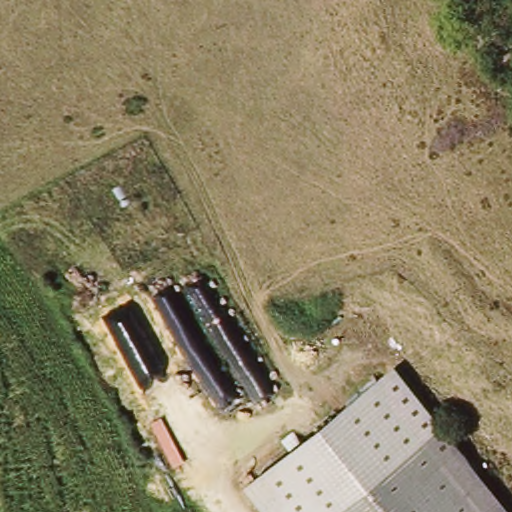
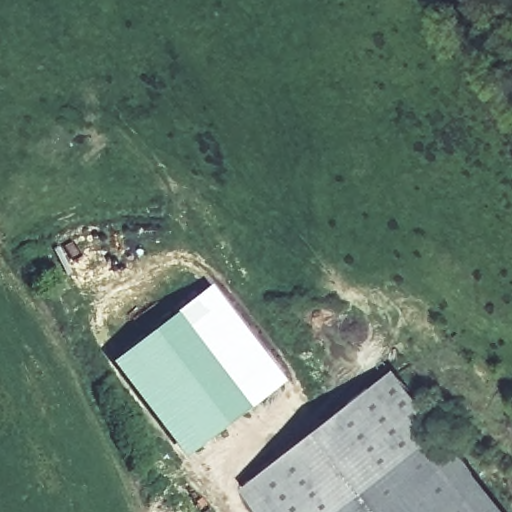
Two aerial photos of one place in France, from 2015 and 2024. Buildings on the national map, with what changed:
new [(109,363),(211,284),(282,382),(182,461),(109,363)]
unchanged [(488,512),(254,512),(240,494),(380,381),(488,512)]

